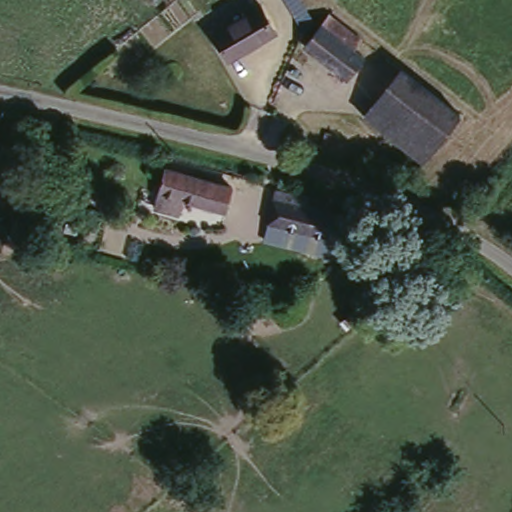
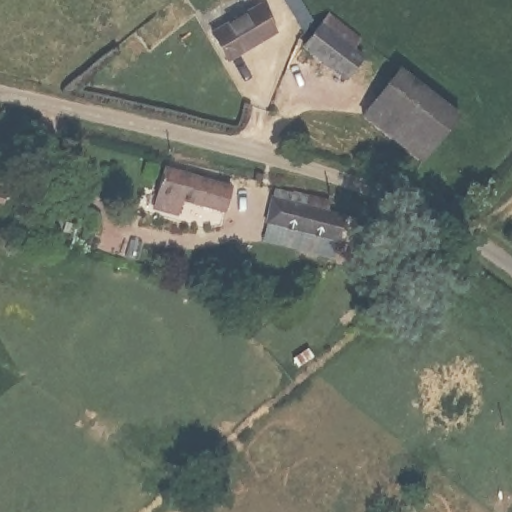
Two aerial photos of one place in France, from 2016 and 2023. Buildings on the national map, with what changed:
unchanged [(233,60),(209,21),(247,0),(256,0),(279,37),(233,60)]
unchanged [(308,36),(286,0),(304,0),(319,24),(308,36)]
unchanged [(363,39),(354,50),(363,56),(347,76),(304,41),(328,12),(363,39)]
unchanged [(398,64),(458,106),(435,141),(424,158),(364,117),(375,100),(398,64)]
unchanged [(230,188),(220,213),(182,202),(178,217),(152,209),(164,165),(230,188)]
unchanged [(331,208),(329,215),(355,225),(345,264),(262,240),(277,190),(331,208)]

